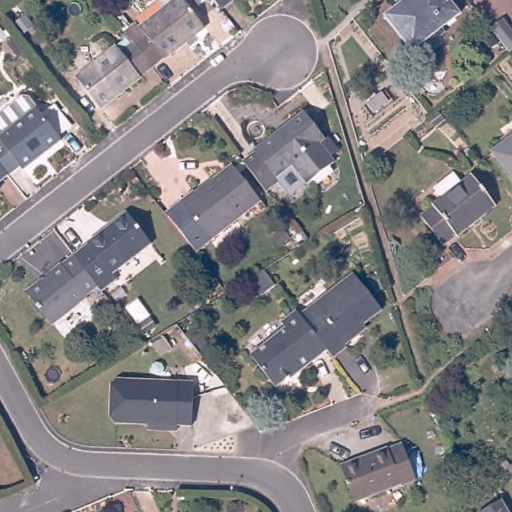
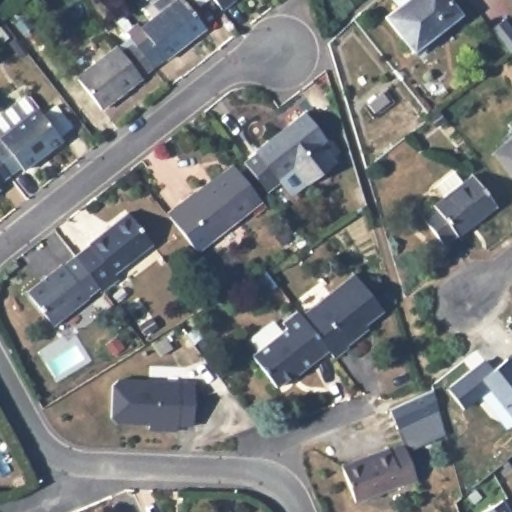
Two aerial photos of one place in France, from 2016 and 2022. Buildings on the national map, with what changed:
unchanged [(140,29),(177,0),(183,0),(205,29),(167,59),(164,60),(152,69),(134,45),(145,35),(140,29)]
unchanged [(213,0),(235,0),(221,10),(213,0)]
unchanged [(451,0),(464,16),(417,53),(390,18),(413,0),(451,0)]
unchanged [(503,19),(512,30),(512,53),(510,54),(490,29),(503,19)]
unchanged [(116,49),(140,79),(101,111),(77,80),(116,49)]
unchanged [(377,114),(370,103),(390,89),(399,101),(377,114)]
unchanged [(0,124),(27,103),(34,104),(66,146),(28,177),(25,173),(12,182),(0,166),(0,124)]
unchanged [(280,185),(268,195),(246,167),(257,158),(279,141),(282,145),(294,135),(291,132),(307,119),(330,147),(322,154),(337,171),(311,191),(310,190),(294,204),(280,185)]
unchanged [(512,137),(512,166),(498,148),(512,137)]
unchanged [(202,187),(205,189),(236,165),(265,200),(205,248),(178,213),(175,209),(202,187)]
unchanged [(2,190),(5,194),(0,198),(0,166),(12,182),(2,190)]
unchanged [(441,209),(441,208),(451,199),(444,190),(463,174),(470,184),(480,176),(506,207),(467,238),(466,237),(453,247),(430,218),(441,209)]
unchanged [(89,246),(89,244),(126,214),(151,245),(114,275),(117,280),(101,293),(98,289),(74,257),(89,246)]
unchanged [(98,289),(86,297),(87,299),(52,325),(26,292),(61,265),(62,266),(74,257),(98,289)]
unchanged [(264,272),(275,286),(261,296),(250,282),(264,272)]
unchanged [(357,275),(386,312),(362,330),(365,334),(350,347),(351,349),(338,359),(331,351),(304,316),(357,275)]
unchanged [(304,316),(331,351),(305,372),(302,369),(281,385),(256,352),(290,327),(285,319),(298,309),(304,316)]
new [(486,392),(462,410),(445,389),(484,360),(492,369),(505,357),(512,352),(512,421),(486,392)]
unchanged [(117,423),(112,418),(114,386),(119,380),(195,384),(192,426),(150,424),(117,423)]
new [(442,433),(411,445),(404,448),(390,411),(432,393),(442,433)]
unchanged [(396,449),(397,451),(411,445),(425,481),(410,486),(410,484),(363,502),(350,466),(396,449)]
unchanged [(469,497),(484,484),(492,495),(476,509),(467,499),(469,497)]
unchanged [(510,497),(512,500),(512,512),(486,512),(510,497)]

